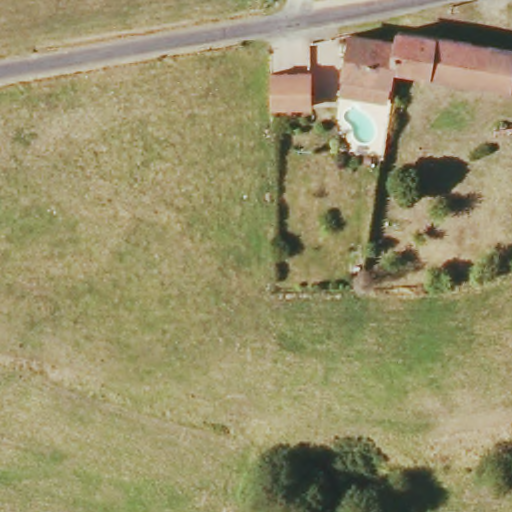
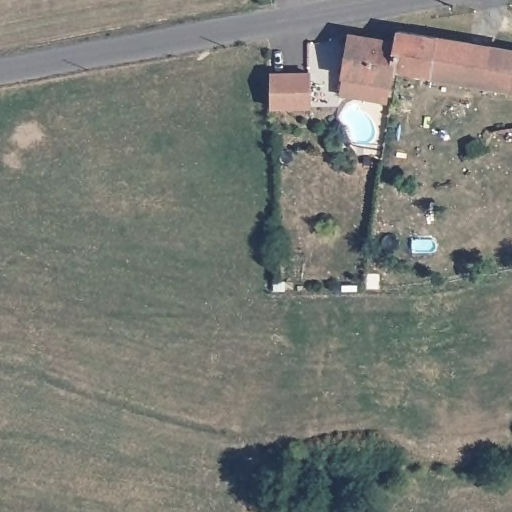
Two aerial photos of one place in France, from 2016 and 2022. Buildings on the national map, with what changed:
unchanged [(400,30),(512,49),(512,87),(398,68),(393,68),(398,40),(400,30)]
unchanged [(345,78),(353,34),(398,40),(393,68),(388,102),(362,98),(342,94),(345,78)]
unchanged [(312,73),(310,107),(272,109),(272,73),(312,73)]

